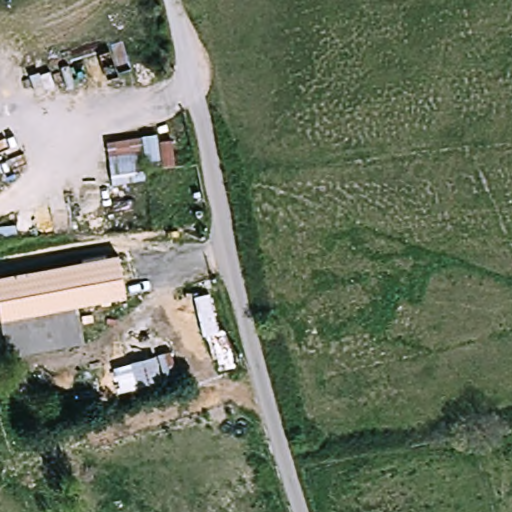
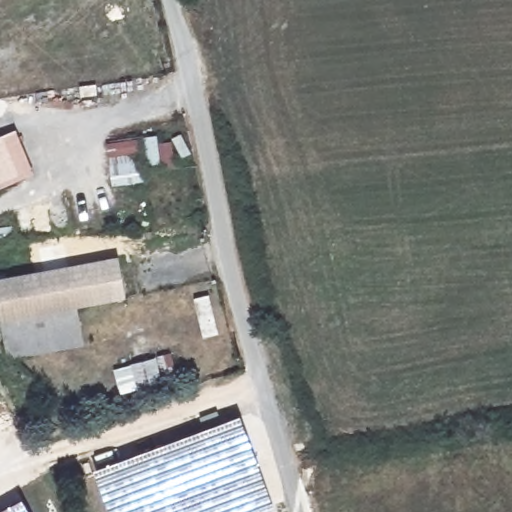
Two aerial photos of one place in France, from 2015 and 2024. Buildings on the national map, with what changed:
new [(1,186),(0,185),(0,137),(16,129),(34,174),(1,186)]
new [(132,138),(139,182),(114,185),(108,142),(132,138)]
unchanged [(0,186),(0,185),(1,186),(0,186)]
unchanged [(83,307),(89,344),(14,357),(7,320),(0,321),(0,278),(125,254),(130,298),(83,307)]
unchanged [(181,377),(142,387),(135,360),(174,350),(181,377)]
new [(203,430),(200,418),(218,411),(222,423),(240,417),(274,507),(262,512),(110,512),(95,470),(203,430)]
new [(29,512),(0,512),(23,500),(29,512)]

